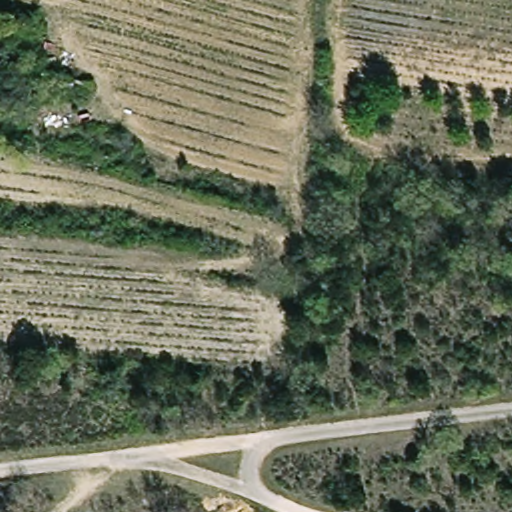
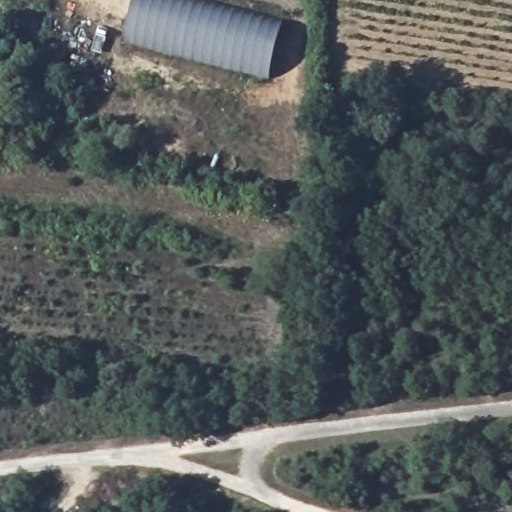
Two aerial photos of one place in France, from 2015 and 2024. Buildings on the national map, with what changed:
new [(126,42),(135,0),(188,0),(283,24),(270,79),(126,42)]

